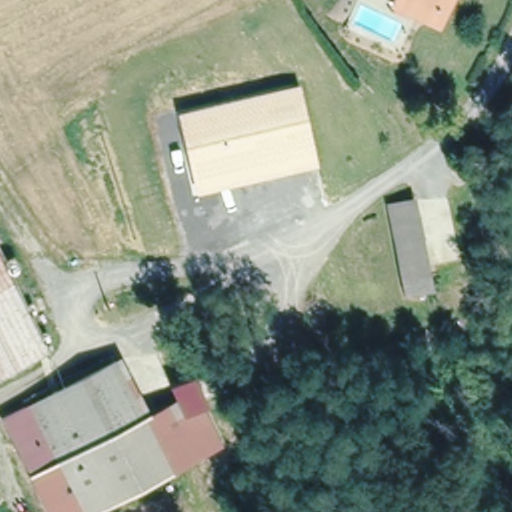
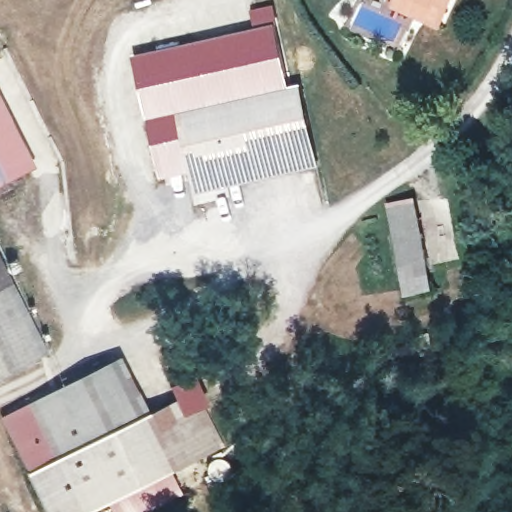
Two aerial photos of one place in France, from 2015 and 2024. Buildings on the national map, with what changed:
unchanged [(393,0),(450,0),(438,24),(393,1),(393,0)]
new [(289,88),(178,111),(191,173),(164,179),(135,55),(275,23),(289,88)]
unchanged [(301,85),(319,168),(196,194),(178,111),(301,85)]
new [(0,185),(0,92),(37,166),(0,185)]
unchanged [(391,208),(418,203),(421,221),(430,269),(404,274),(395,226),(391,208)]
unchanged [(0,260),(46,350),(0,373),(0,260)]
unchanged [(120,361),(146,415),(175,472),(95,512),(53,512),(6,418),(120,361)]
unchanged [(180,399),(173,384),(191,376),(226,446),(175,472),(146,415),(180,399)]

